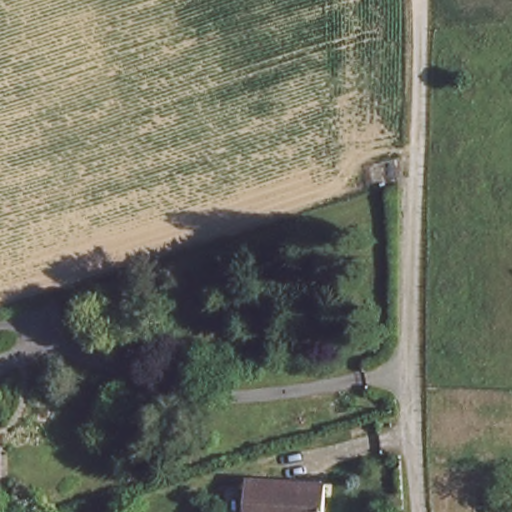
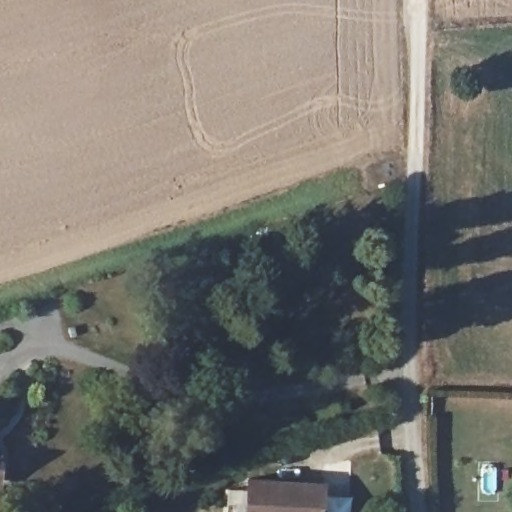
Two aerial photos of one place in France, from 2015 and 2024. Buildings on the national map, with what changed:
unchanged [(320,483),(317,512),(242,512),(245,477),(320,483)]

